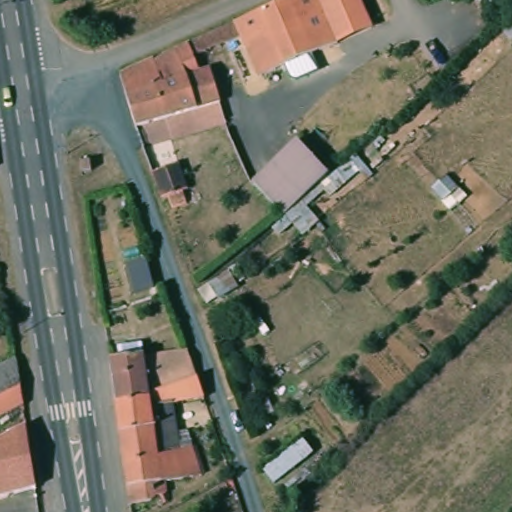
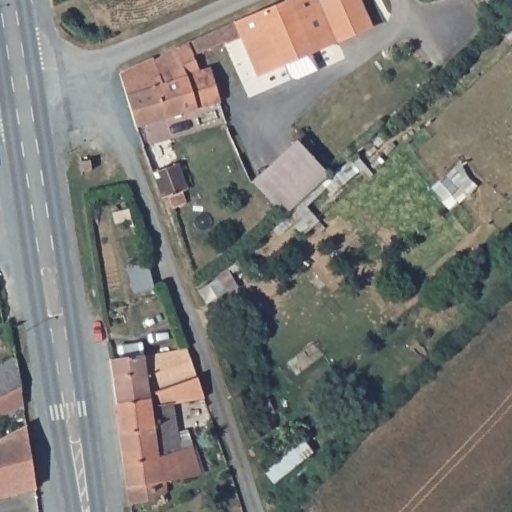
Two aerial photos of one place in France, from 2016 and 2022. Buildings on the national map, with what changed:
unchanged [(364,0),(376,28),(261,79),(251,53),(239,25),(249,20),(295,0),(364,0)]
unchanged [(239,25),(251,53),(238,59),(234,46),(228,44),(196,57),(202,74),(215,69),(225,104),(140,128),(124,75),(239,25)]
unchanged [(327,173),(281,214),(253,181),(296,139),(327,173)]
unchanged [(91,169),(79,172),(77,161),(89,159),(91,169)]
unchanged [(158,180),(155,172),(182,162),(192,189),(185,191),(190,204),(175,209),(170,197),(165,199),(158,180)]
unchanged [(190,377),(156,390),(109,396),(104,360),(137,356),(138,358),(181,352),(190,377)]
unchanged [(20,388),(22,406),(0,418),(0,367),(16,358),(20,388)]
unchanged [(198,397),(167,402),(172,433),(187,430),(190,447),(154,461),(148,426),(115,431),(109,396),(156,390),(190,377),(198,397)]
unchanged [(148,426),(154,461),(190,447),(195,477),(159,483),(162,498),(149,501),(150,503),(126,508),(115,431),(148,426)]
unchanged [(0,441),(26,427),(35,490),(0,499),(0,441)]

